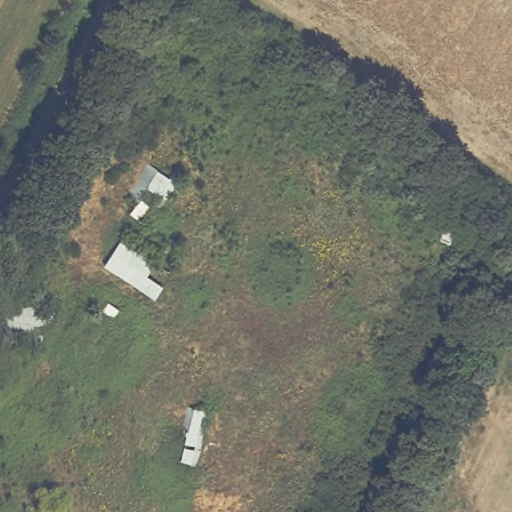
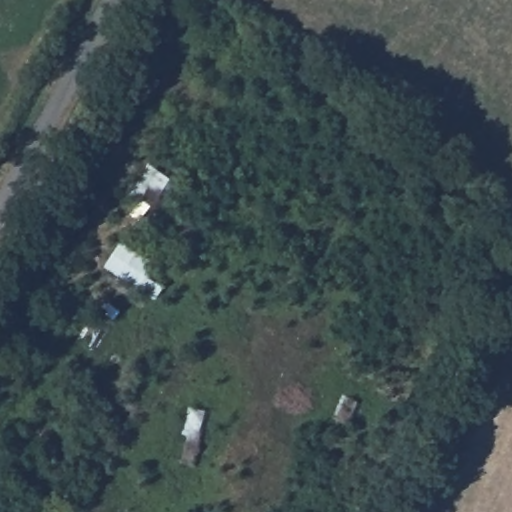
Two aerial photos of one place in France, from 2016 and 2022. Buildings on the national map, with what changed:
unchanged [(149,165),(179,184),(159,216),(129,197),(149,165)]
unchanged [(170,276),(155,298),(105,266),(120,242),(170,276)]
unchanged [(17,296),(54,315),(35,350),(0,332),(0,328),(17,296)]
unchanged [(91,320),(109,330),(96,352),(79,342),(91,320)]
unchanged [(5,387),(0,389),(0,371),(5,387)]
unchanged [(360,403),(350,425),(332,417),(341,395),(360,403)]
unchanged [(206,413),(193,465),(174,460),(187,408),(206,413)]

